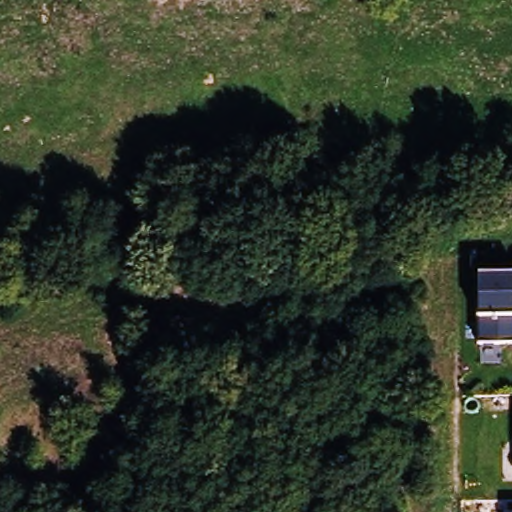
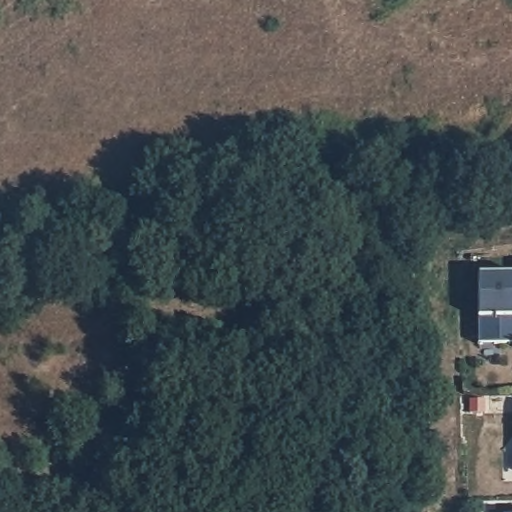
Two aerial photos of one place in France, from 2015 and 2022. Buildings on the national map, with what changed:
unchanged [(479,317),(478,274),(512,274),(512,343),(480,343),(479,317)]

